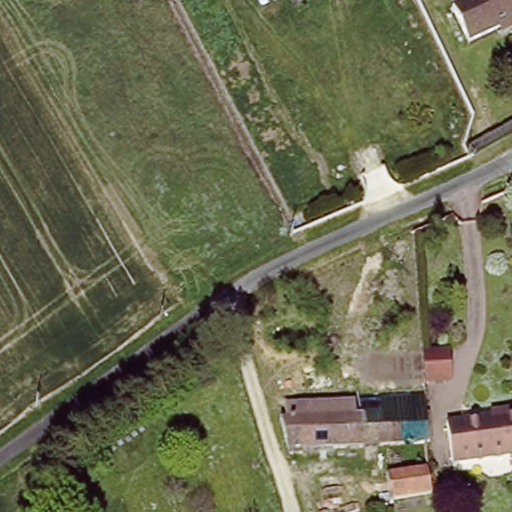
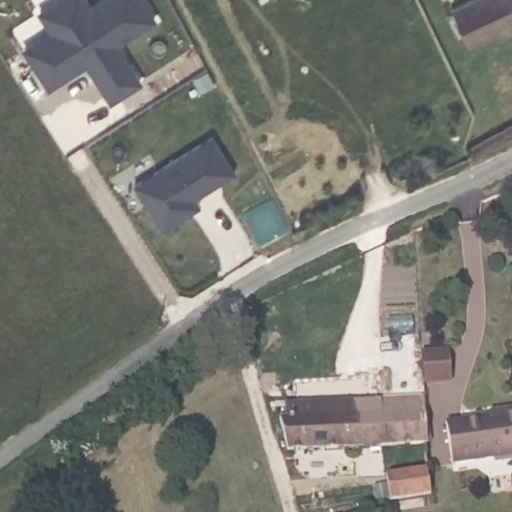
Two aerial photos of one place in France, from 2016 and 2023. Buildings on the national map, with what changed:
new [(121,44),(144,82),(111,104),(87,65),(50,91),(24,49),(51,32),(38,12),(58,0),(88,0),(91,5),(99,0),(146,0),(159,20),(121,44)]
unchanged [(507,32),(503,24),(472,37),(459,7),(475,0),(512,0),(512,30),(507,32)]
new [(197,197),(202,206),(164,230),(136,184),(214,135),(237,172),(197,197)]
new [(442,351),(447,351),(447,381),(442,381),(422,382),(424,354),(442,351)]
unchanged [(293,450),(286,415),(425,405),(427,442),(293,450)]
unchanged [(455,465),(450,416),(512,407),(512,456),(455,465)]
unchanged [(396,505),(389,473),(429,465),(434,498),(396,505)]

